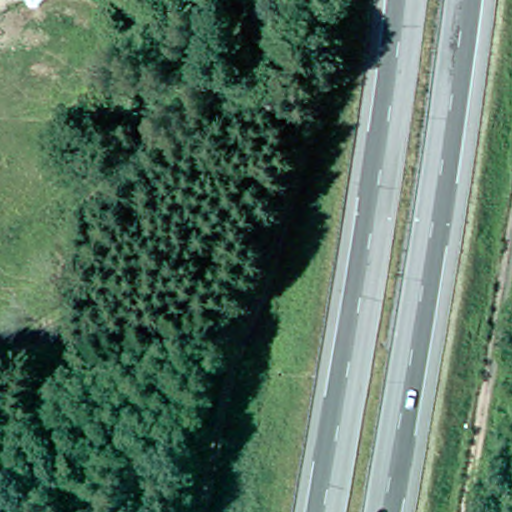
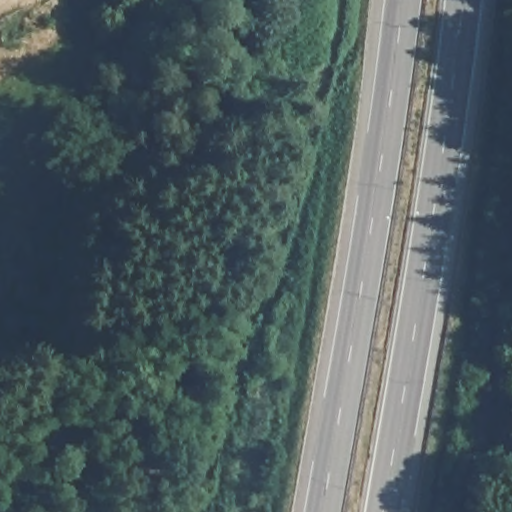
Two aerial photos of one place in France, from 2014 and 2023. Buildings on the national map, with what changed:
[]

